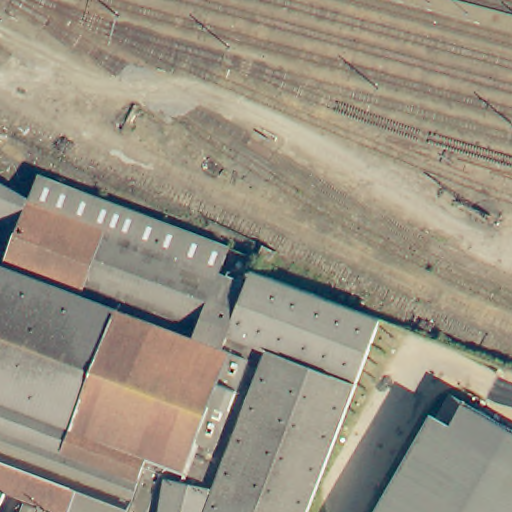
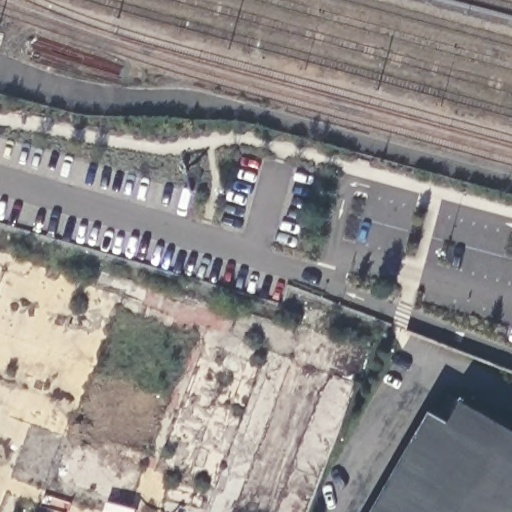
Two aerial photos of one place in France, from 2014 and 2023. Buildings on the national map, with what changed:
demolished [(46,174),(258,254),(256,267),(215,252),(44,190),(39,188),(46,174)]
demolished [(309,512),(21,512),(27,497),(59,509),(60,508),(10,488),(7,498),(7,499),(2,512),(0,512),(0,221),(12,226),(5,246),(28,255),(232,331),(252,281),(144,241),(35,199),(39,188),(44,190),(215,252),(256,267),(290,280),(384,317),(309,512)]
unchanged [(447,391),(512,429),(512,512),(376,512),(447,391)]

